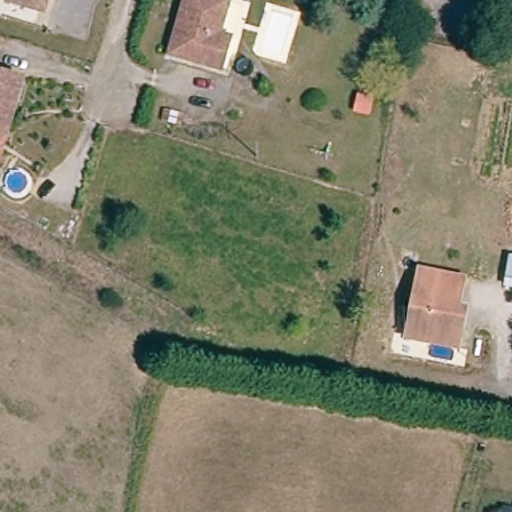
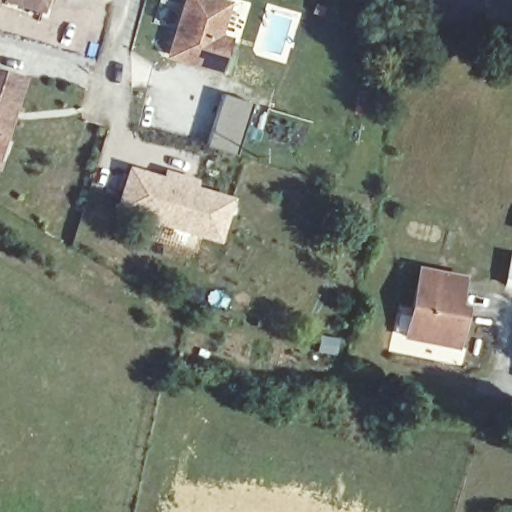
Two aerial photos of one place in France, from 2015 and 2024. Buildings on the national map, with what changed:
unchanged [(16,0),(51,0),(49,9),(45,17),(14,7),(16,0)]
unchanged [(225,5),(216,36),(229,40),(221,69),(173,55),(179,31),(183,20),(188,0),(209,0),(225,5)]
unchanged [(0,147),(0,75),(20,81),(0,147)]
new [(255,105),(240,158),(208,147),(224,96),(255,105)]
new [(162,176),(164,171),(199,180),(197,188),(235,200),(221,245),(116,211),(129,167),(162,176)]
unchanged [(410,315),(415,275),(457,281),(468,283),(463,320),(459,352),(415,346),(406,345),(410,315)]

